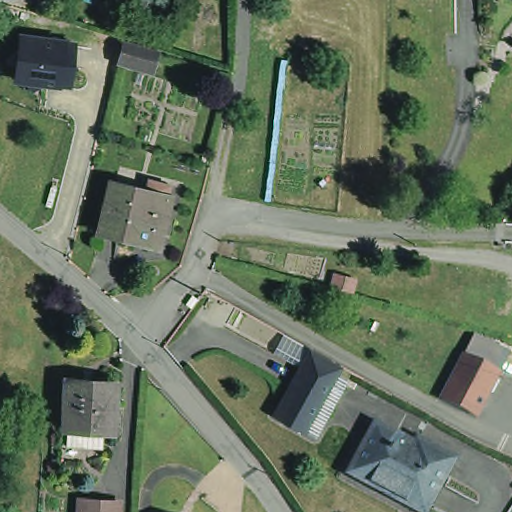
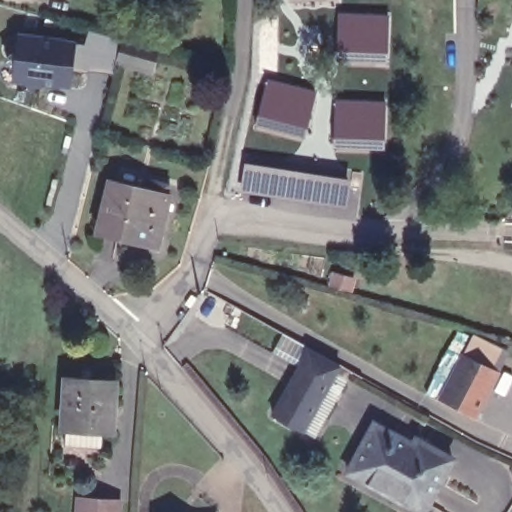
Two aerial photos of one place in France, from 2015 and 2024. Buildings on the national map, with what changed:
new [(336,10),(390,12),(389,55),(334,55),(336,10)]
new [(71,88),(59,87),(59,89),(13,84),(18,32),(65,37),(65,41),(77,42),(71,88)]
unchanged [(118,58),(123,43),(156,52),(151,67),(118,58)]
new [(265,77),(316,89),(303,139),(253,128),(265,77)]
new [(333,97),(387,99),(384,148),(331,145),(333,97)]
new [(243,159),(348,175),(346,207),(318,207),(238,192),(243,159)]
new [(318,207),(346,207),(348,175),(348,170),(363,171),(355,224),(318,217),(318,207)]
unchanged [(140,250),(97,239),(109,190),(143,199),(146,186),(169,192),(166,204),(156,245),(154,253),(140,250)]
unchanged [(193,293),(197,297),(190,306),(186,302),(193,293)]
unchanged [(303,351),(333,368),(321,387),(296,434),(266,417),(292,371),(303,351)]
unchanged [(471,415),(434,397),(437,391),(454,353),(492,371),(474,409),(471,415)]
unchanged [(69,416),(65,415),(69,370),(116,373),(113,419),(105,418),(104,436),(68,433),(69,416)]
unchanged [(341,474),(368,426),(407,448),(411,441),(446,461),(417,512),(409,512),(341,474)]
unchanged [(512,479),(512,487),(509,484),(512,479)]
unchanged [(71,506),(71,501),(81,501),(111,502),(111,512),(71,512),(71,506)]

